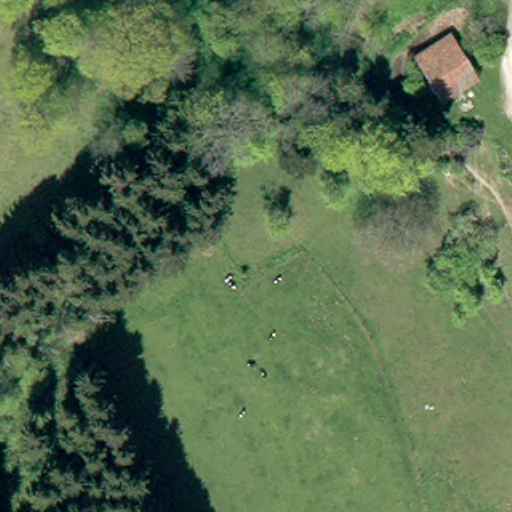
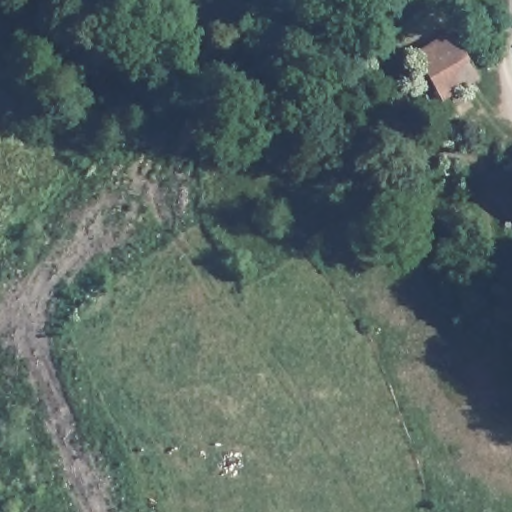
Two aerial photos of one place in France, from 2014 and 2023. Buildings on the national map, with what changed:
unchanged [(475,75),(437,96),(423,72),(461,51),(475,75)]

